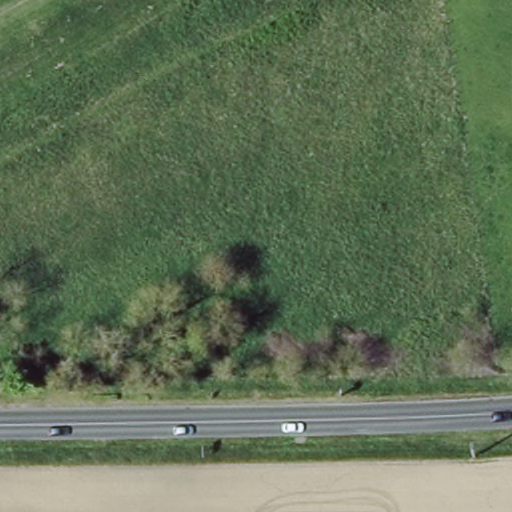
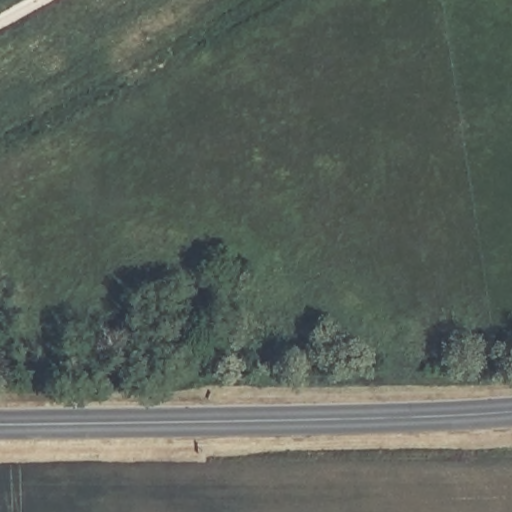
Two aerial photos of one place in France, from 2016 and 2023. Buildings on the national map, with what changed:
unchanged [(225,318),(215,362),(194,357),(205,313),(225,318)]

